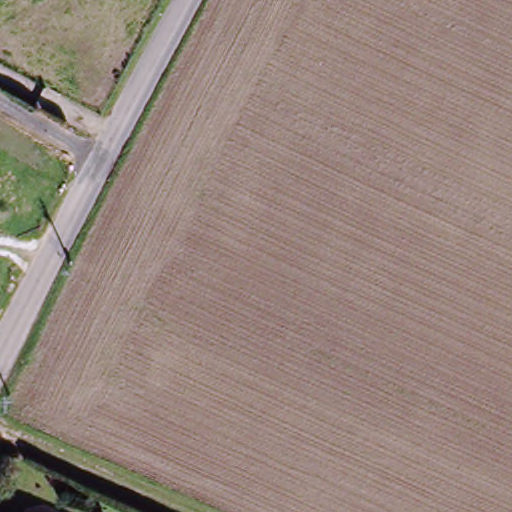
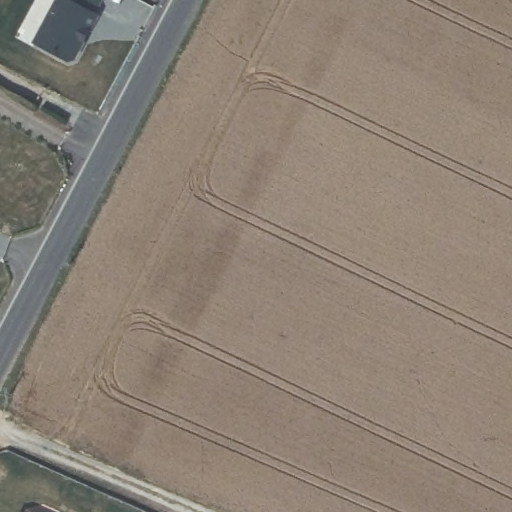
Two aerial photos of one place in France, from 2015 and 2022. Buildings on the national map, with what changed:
new [(100,16),(72,64),(33,44),(57,0),(106,0),(98,15),(100,16)]
unchanged [(27,508),(34,512),(25,512),(27,508)]

